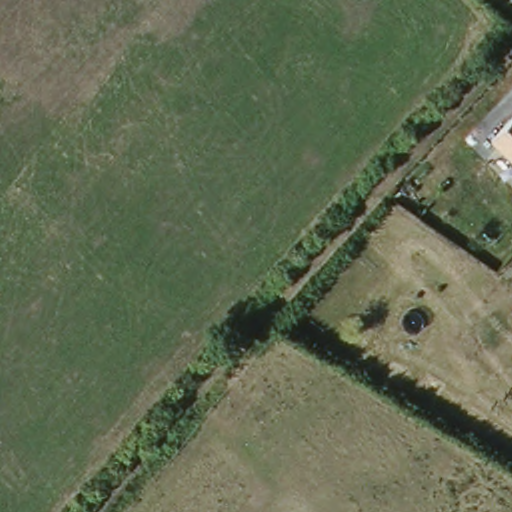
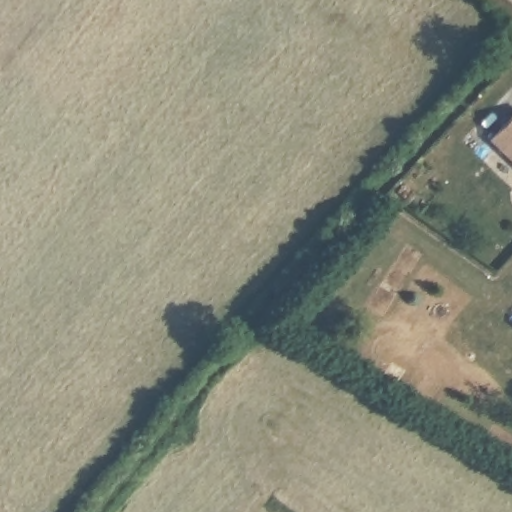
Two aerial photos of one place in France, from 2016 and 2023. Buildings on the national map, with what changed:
unchanged [(512,146),(500,134),(512,122),(512,146)]

